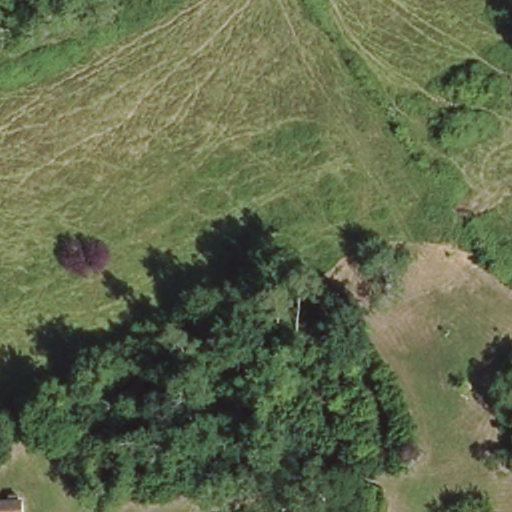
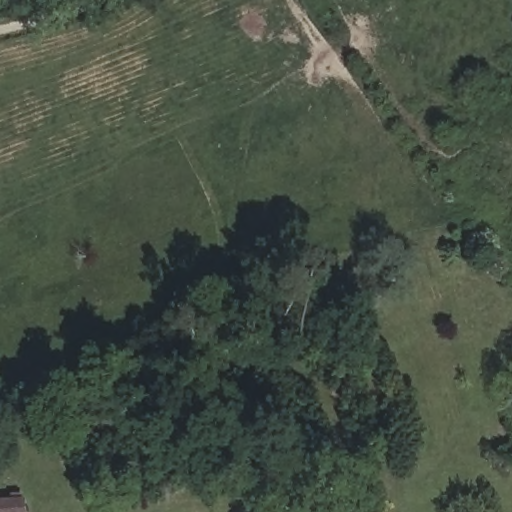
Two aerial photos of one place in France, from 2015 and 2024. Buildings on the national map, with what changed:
unchanged [(31,512),(0,512),(0,487),(32,487),(31,512)]

